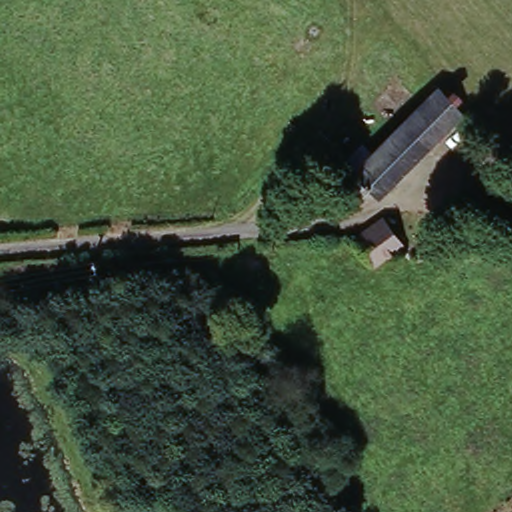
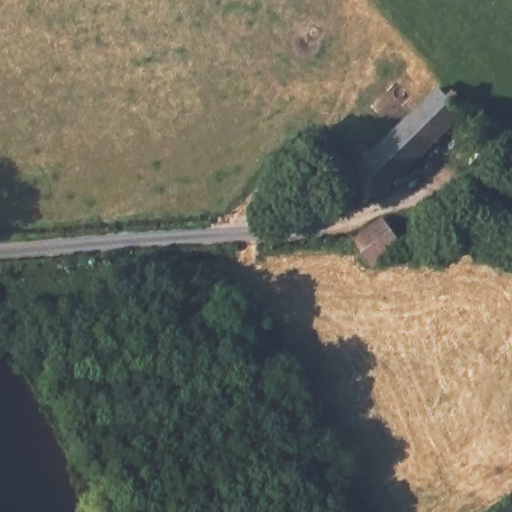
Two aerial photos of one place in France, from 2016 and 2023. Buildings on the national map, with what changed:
unchanged [(341,164),(370,136),(378,144),(445,79),(468,106),(386,185),(381,182),(370,193),(341,164)]
unchanged [(385,215),(403,242),(375,262),(355,237),(385,215)]

